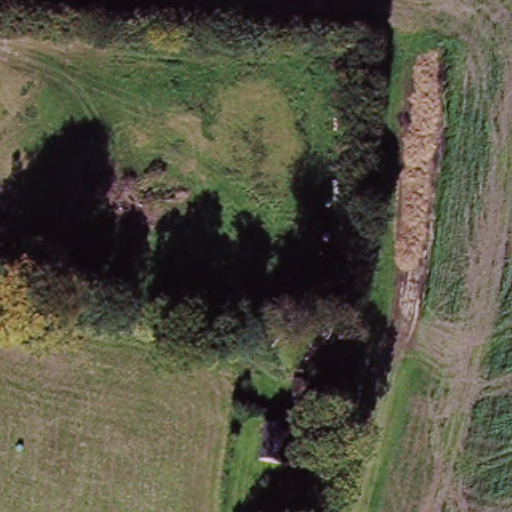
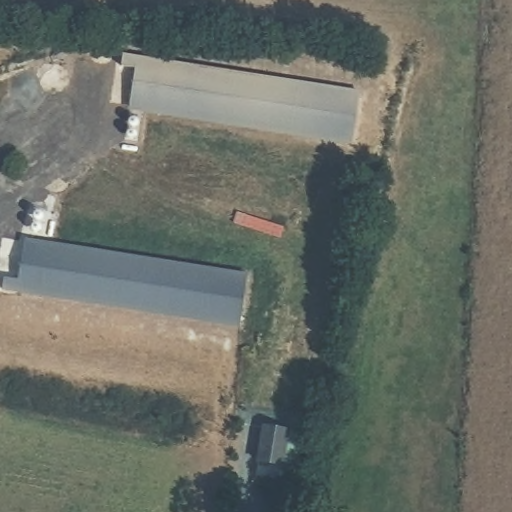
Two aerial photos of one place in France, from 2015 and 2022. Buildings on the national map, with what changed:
new [(348,138),(125,105),(131,66),(117,64),(119,53),(133,55),(132,58),(355,91),(348,138)]
new [(235,319),(11,285),(10,289),(0,287),(0,275),(12,277),(19,240),(241,273),(235,319)]
unchanged [(298,433),(293,467),(258,462),(263,427),(298,433)]

